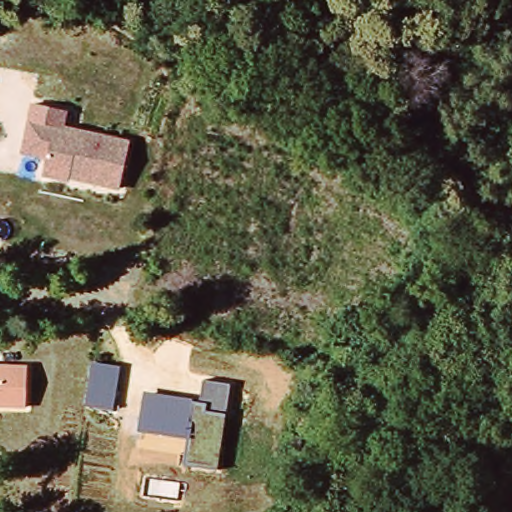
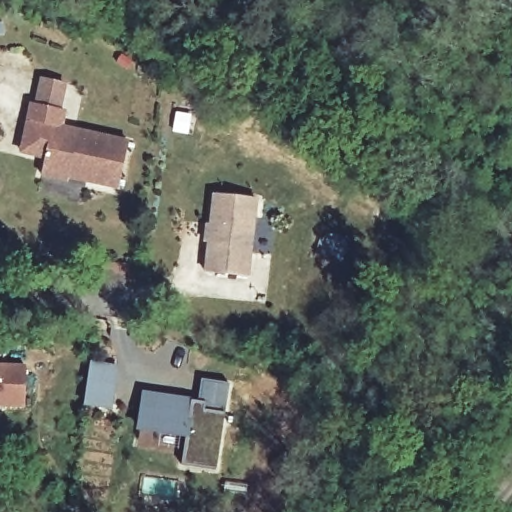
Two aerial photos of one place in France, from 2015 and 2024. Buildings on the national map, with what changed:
unchanged [(69,177),(68,185),(39,177),(43,159),(19,154),(29,102),(68,109),(65,124),(131,137),(121,187),(69,177)]
new [(259,199),(250,280),(204,274),(214,194),(259,199)]
unchanged [(91,360),(120,365),(113,408),(84,403),(91,360)]
unchanged [(25,406),(0,406),(0,366),(26,367),(25,406)]
unchanged [(186,437),(138,430),(143,392),(199,401),(203,379),(230,382),(218,467),(183,461),(186,437)]

